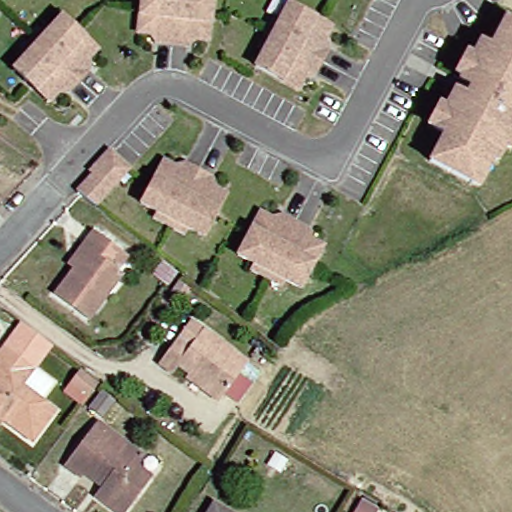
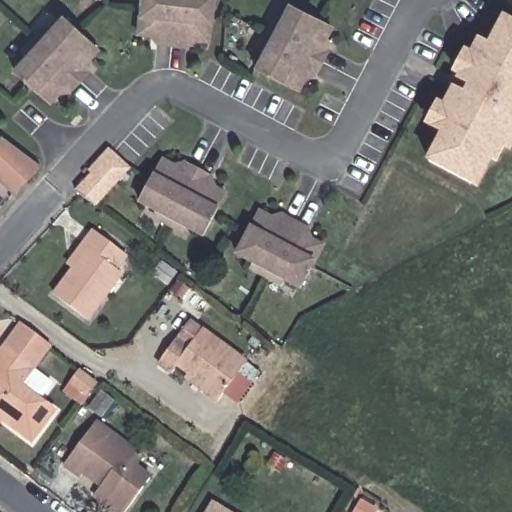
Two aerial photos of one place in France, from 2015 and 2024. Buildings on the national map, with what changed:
unchanged [(216,4),(212,39),(192,36),(191,44),(161,40),(162,33),(141,30),(145,4),(145,0),(217,0),(216,4)]
unchanged [(330,24),(321,42),(327,45),(313,72),(307,69),(297,86),(255,64),(288,1),(330,24)]
unchanged [(82,62),(88,67),(68,90),(62,85),(49,100),(13,67),(61,15),(96,47),(82,62)]
unchanged [(490,154),(476,181),(433,159),(448,131),(438,125),(432,122),(442,102),(449,105),(458,87),(471,94),(476,84),(463,77),(465,74),(459,71),(470,50),(476,54),(484,39),(494,44),(508,16),(512,18),(512,146),(508,144),(501,159),(490,154)]
new [(38,164),(13,191),(0,179),(0,134),(38,164)]
unchanged [(93,205),(79,194),(75,191),(111,151),(128,166),(93,205)]
unchanged [(181,168),(185,161),(211,175),(207,182),(226,191),(204,235),(140,201),(162,159),(181,168)]
unchanged [(242,252),(265,210),(283,220),(286,213),(313,227),(310,234),(327,243),(305,286),(242,252)]
unchanged [(117,256),(106,271),(111,275),(79,320),(43,293),(62,267),(57,263),(71,244),(82,230),(117,256)]
unchanged [(175,272),(167,284),(152,273),(161,262),(175,272)]
unchanged [(227,398),(213,388),(207,396),(191,385),(175,372),(177,368),(167,360),(161,368),(148,358),(167,333),(179,341),(191,325),(236,357),(229,367),(242,376),(227,398)]
unchanged [(28,363),(15,380),(40,399),(49,405),(26,436),(0,417),(0,342),(28,363)]
unchanged [(87,388),(77,402),(59,388),(70,374),(87,388)]
unchanged [(91,396),(104,405),(90,422),(79,412),(91,396)]
unchanged [(99,512),(84,501),(91,491),(73,478),(70,482),(54,470),(85,426),(120,452),(134,462),(127,471),(141,481),(119,512),(99,512)]
unchanged [(217,512),(193,512),(199,501),(217,512)]

